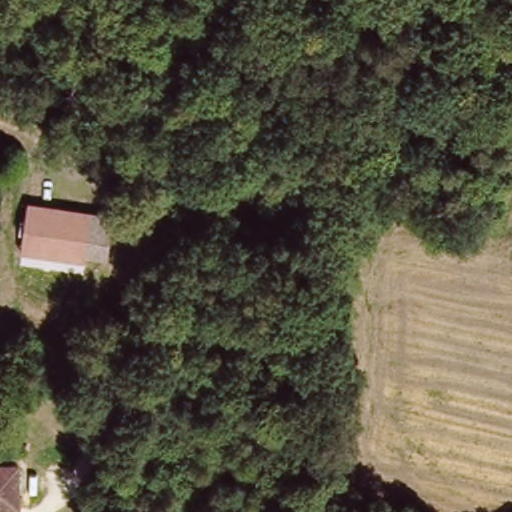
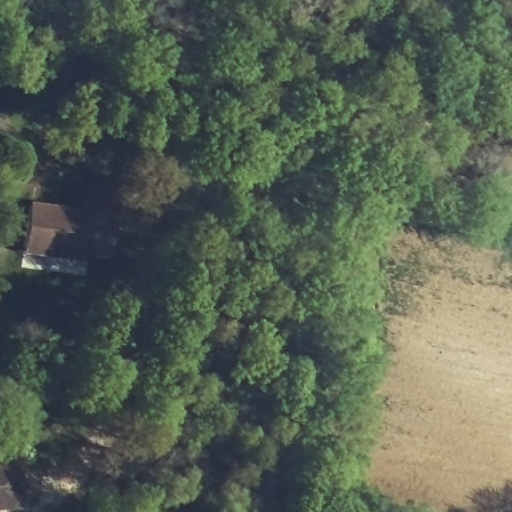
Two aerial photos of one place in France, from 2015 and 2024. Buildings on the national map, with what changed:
unchanged [(57,263),(60,256),(27,254),(27,249),(33,206),(85,210),(84,212),(82,215),(94,214),(89,253),(88,265),(57,263)]
unchanged [(22,504),(0,504),(0,461),(23,461),(22,504)]
unchanged [(120,479),(139,481),(136,500),(117,498),(120,479)]

